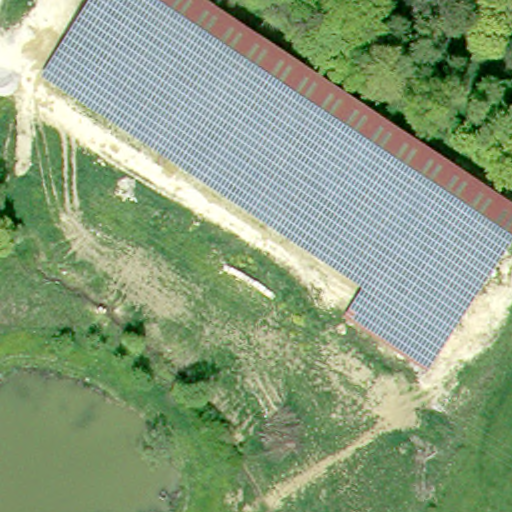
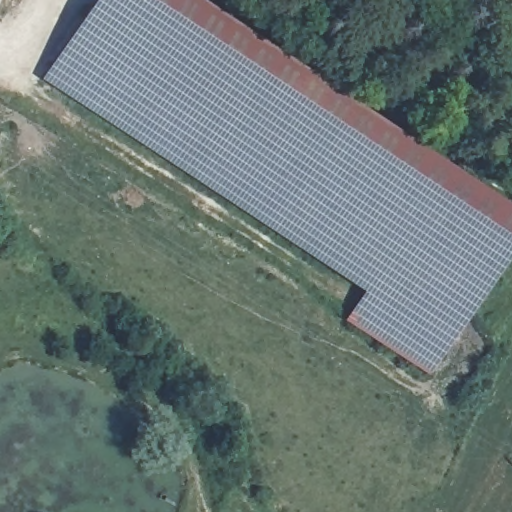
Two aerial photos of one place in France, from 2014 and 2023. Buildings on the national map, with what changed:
unchanged [(512,249),(427,378),(340,324),(360,295),(41,81),(95,0),(194,0),(512,212),(512,249)]

